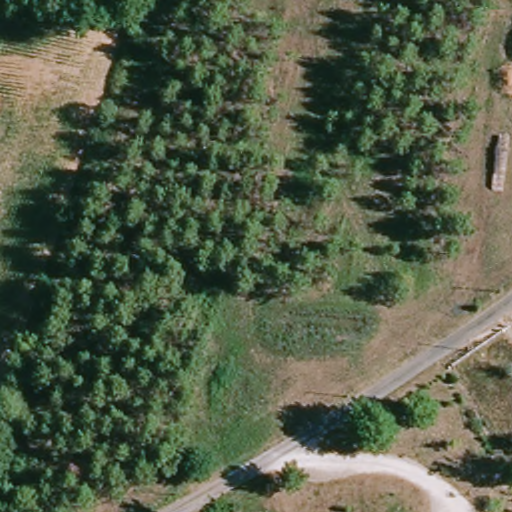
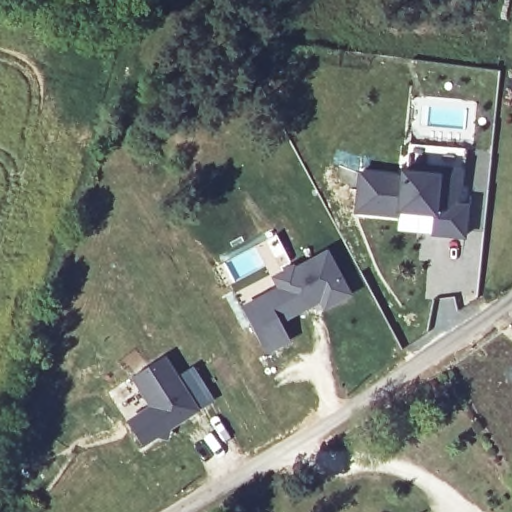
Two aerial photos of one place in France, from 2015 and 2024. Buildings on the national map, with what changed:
new [(399,177),(400,169),(432,172),(432,162),(462,166),(458,205),(469,206),(466,240),(432,235),(434,216),(399,212),(398,220),(353,216),(356,171),(399,177)]
new [(294,265),(295,268),(329,249),(353,294),(325,309),(320,300),(281,322),(266,295),(278,289),(271,275),(294,265)]
new [(200,410),(143,447),(127,421),(149,407),(131,378),(166,355),(200,410)]

